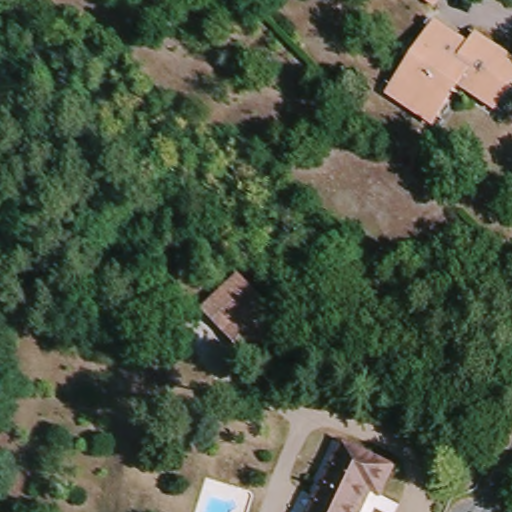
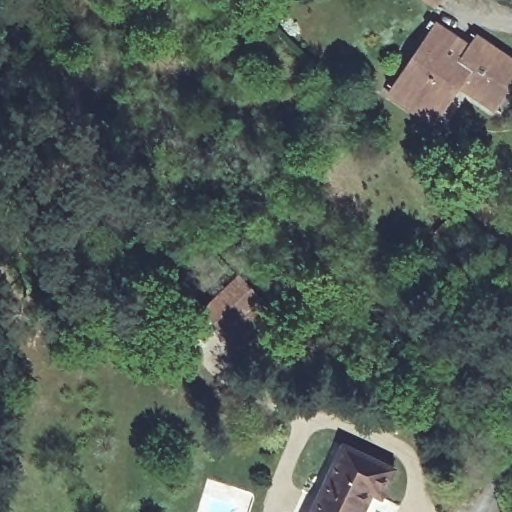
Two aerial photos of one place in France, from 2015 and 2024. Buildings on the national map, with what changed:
unchanged [(418,0),(442,0),(436,11),(418,0)]
unchanged [(466,51),(474,41),(512,68),(512,87),(494,113),(459,89),(435,122),(389,91),(434,29),(466,51)]
unchanged [(0,283),(0,279),(1,282),(0,283)]
unchanged [(259,301),(223,337),(201,317),(236,279),(259,301)]
unchanged [(283,324),(248,359),(223,337),(259,301),(283,324)]
unchanged [(393,466),(378,498),(371,495),(362,512),(308,512),(346,441),(393,466)]

